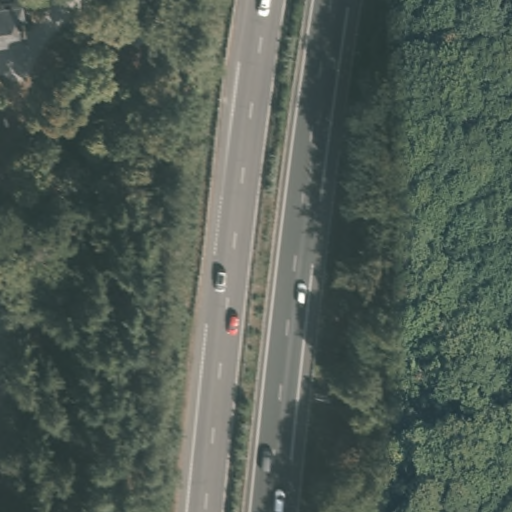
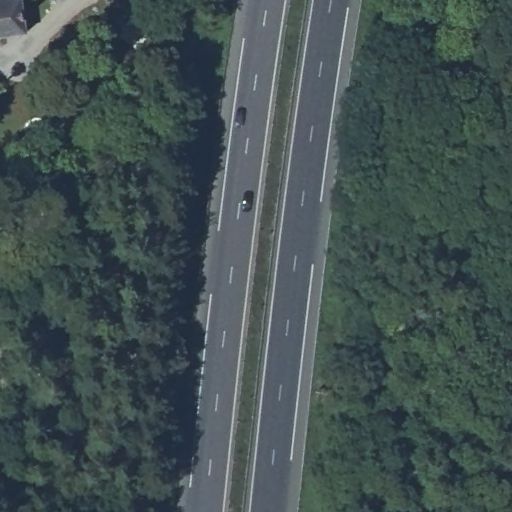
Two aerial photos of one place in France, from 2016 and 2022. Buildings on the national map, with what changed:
unchanged [(26,32),(0,34),(0,0),(22,0),(26,32)]

